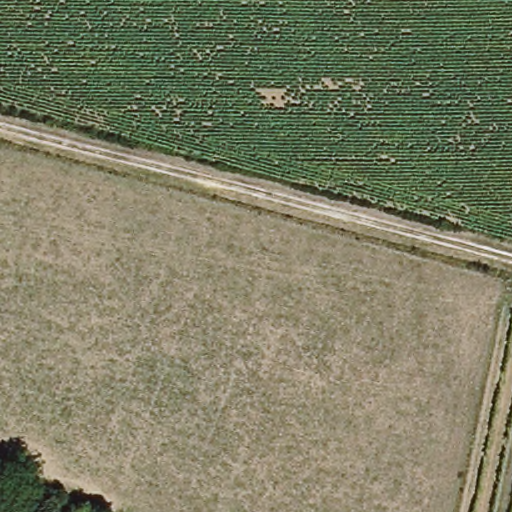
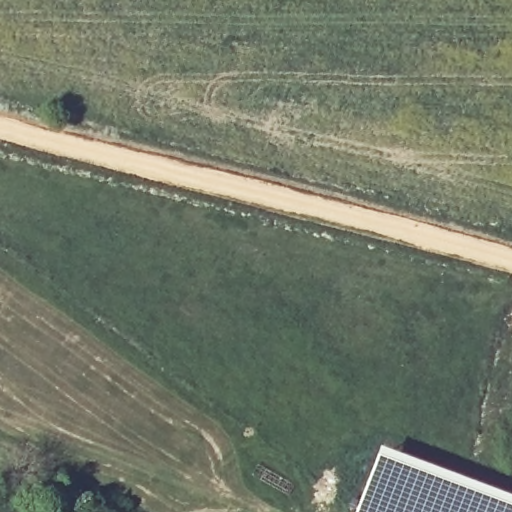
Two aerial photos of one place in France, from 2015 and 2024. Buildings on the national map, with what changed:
new [(512,502),(512,512),(353,512),(376,451),(512,502)]

